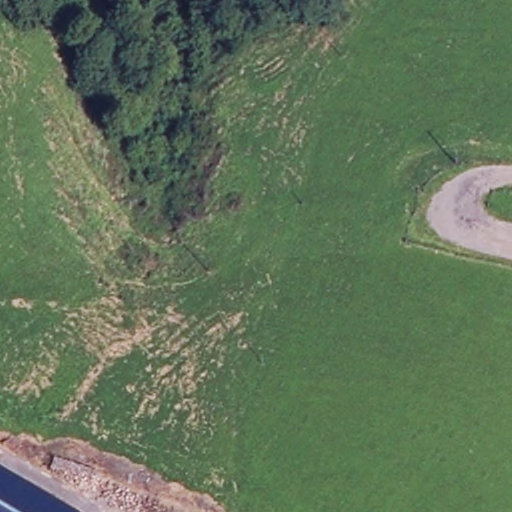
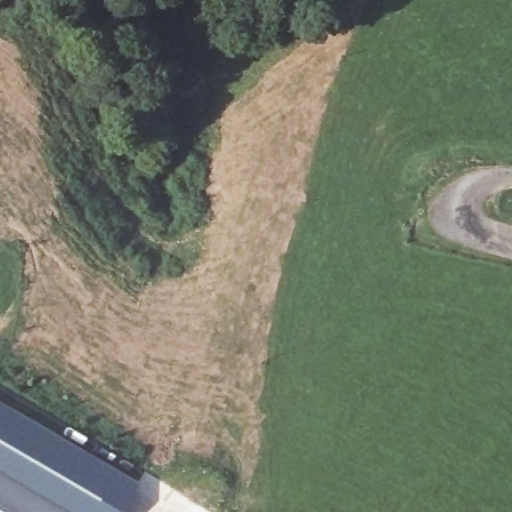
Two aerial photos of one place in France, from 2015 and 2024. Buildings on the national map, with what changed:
new [(120,512),(0,512),(0,398),(137,481),(120,512)]
demolished [(0,512),(0,482),(50,512),(0,512)]

